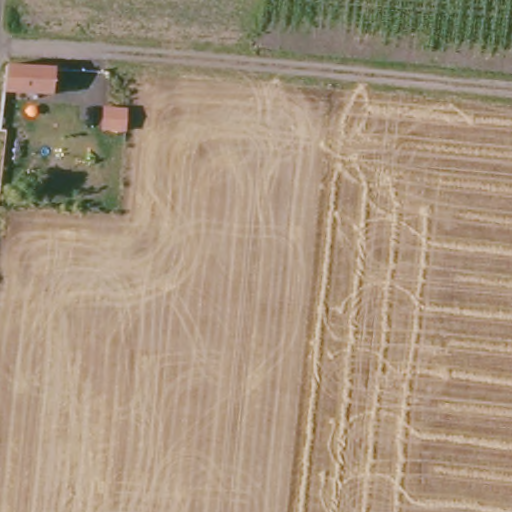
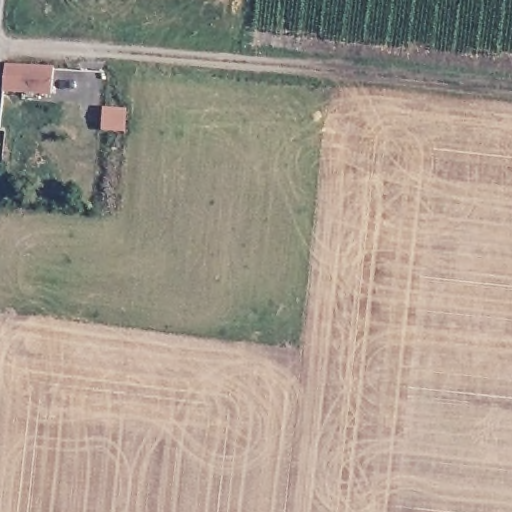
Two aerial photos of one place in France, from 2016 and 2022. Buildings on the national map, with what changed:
unchanged [(47,96),(5,95),(7,66),(49,67),(47,96)]

